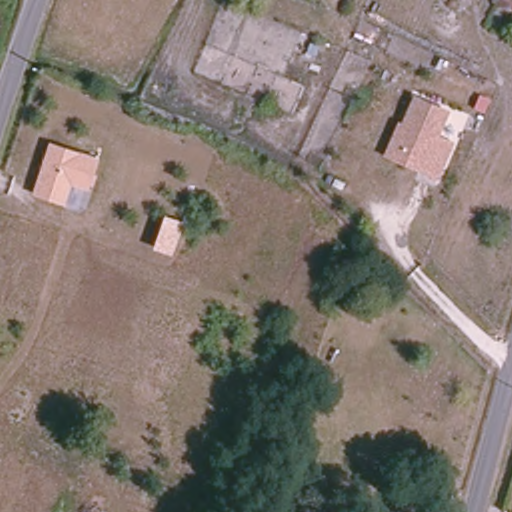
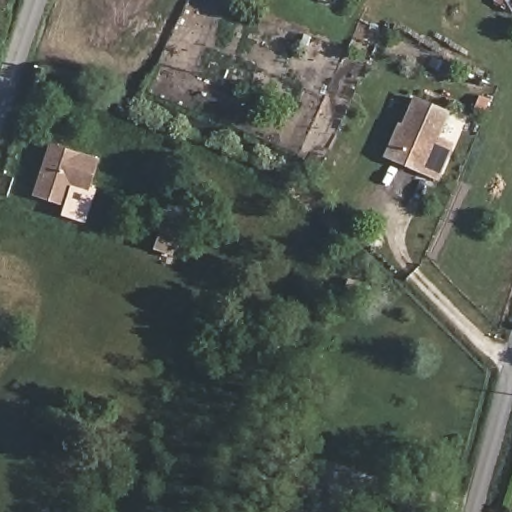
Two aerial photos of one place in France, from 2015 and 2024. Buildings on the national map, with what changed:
unchanged [(455,142),(439,179),(383,156),(399,121),(402,122),(413,97),(450,111),(439,136),(455,142)]
unchanged [(89,191),(71,185),(65,205),(32,195),(50,142),(100,157),(89,191)]

